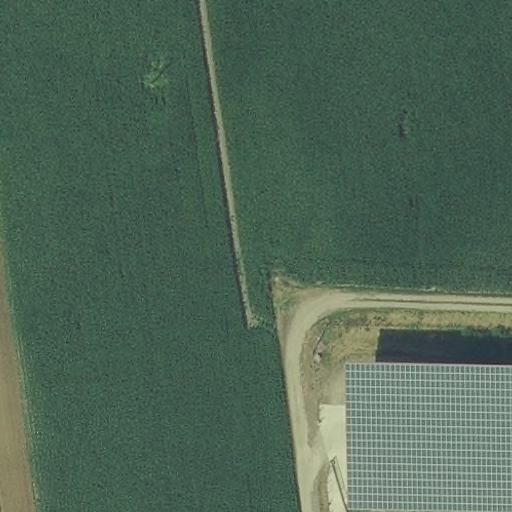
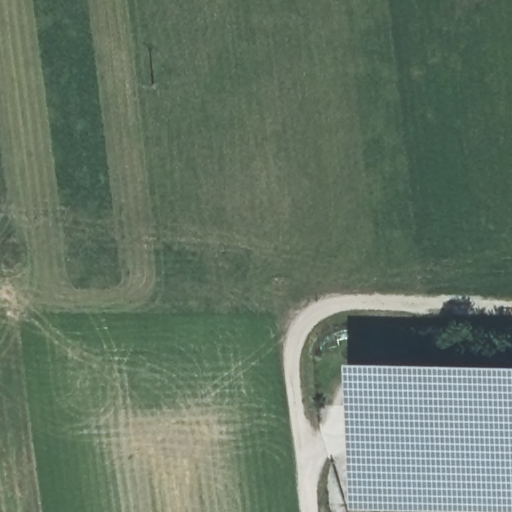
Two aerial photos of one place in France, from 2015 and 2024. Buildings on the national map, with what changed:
unchanged [(512,512),(445,512),(350,510),(345,352),(512,356),(512,512)]

